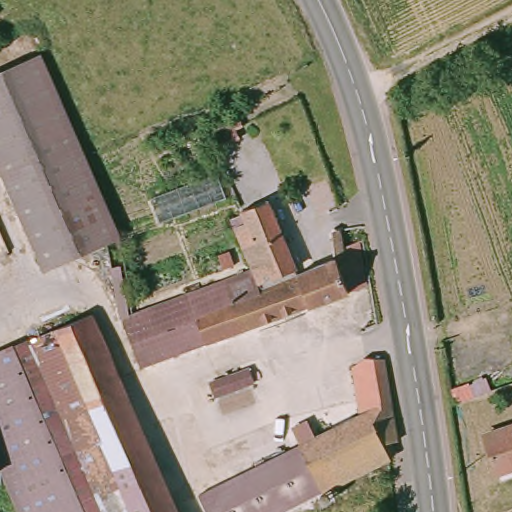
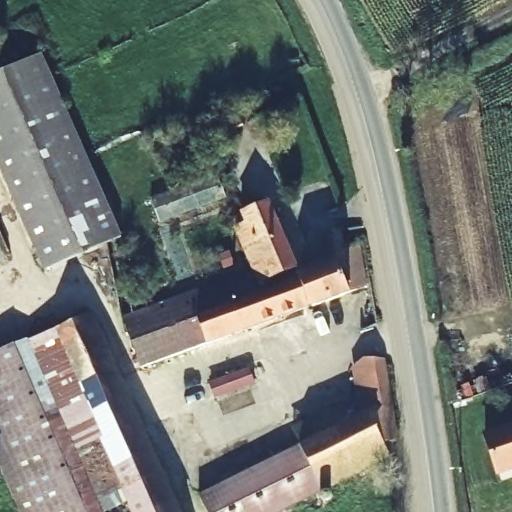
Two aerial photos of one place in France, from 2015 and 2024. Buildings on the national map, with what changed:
unchanged [(0,171),(0,71),(18,64),(40,55),(57,97),(93,182),(118,241),(112,244),(42,271),(0,171)]
unchanged [(239,117),(272,202),(297,271),(265,285),(263,282),(235,211),(243,207),(212,129),(239,117)]
unchanged [(130,323),(132,329),(149,322),(263,282),(265,285),(267,290),(343,260),(363,252),(370,294),(137,377),(127,350),(118,328),(130,323)]
unchanged [(120,488),(121,487),(83,391),(67,397),(39,335),(48,331),(90,312),(106,347),(178,512),(88,512),(85,505),(120,488)]
unchanged [(0,352),(39,335),(67,397),(83,391),(121,487),(120,488),(85,505),(88,512),(20,512),(0,466),(0,352)]
unchanged [(227,476),(228,478),(323,427),(370,404),(362,358),(383,355),(399,435),(387,439),(392,455),(388,457),(315,492),(307,496),(275,512),(210,512),(200,491),(227,476)]
unchanged [(485,433),(512,424),(512,465),(497,471),(485,433)]

